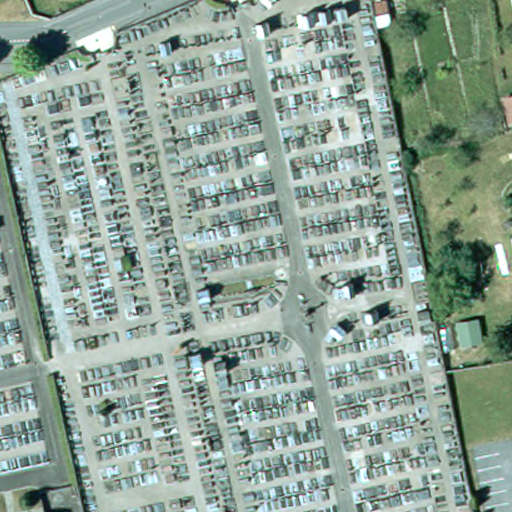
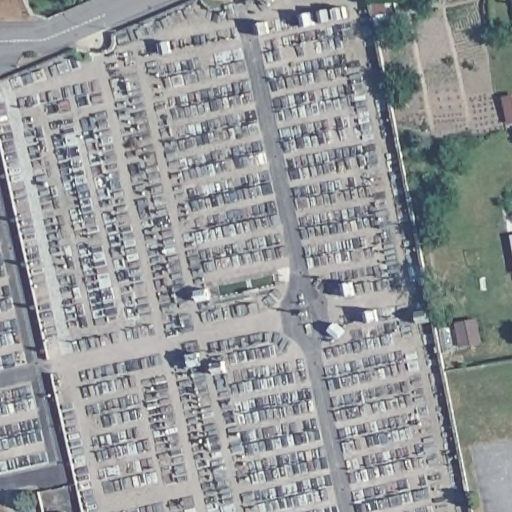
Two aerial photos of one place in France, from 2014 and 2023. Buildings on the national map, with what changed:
unchanged [(512,98),(512,105),(511,99),(512,98)]
unchanged [(60,506),(61,512),(29,512),(60,506)]

